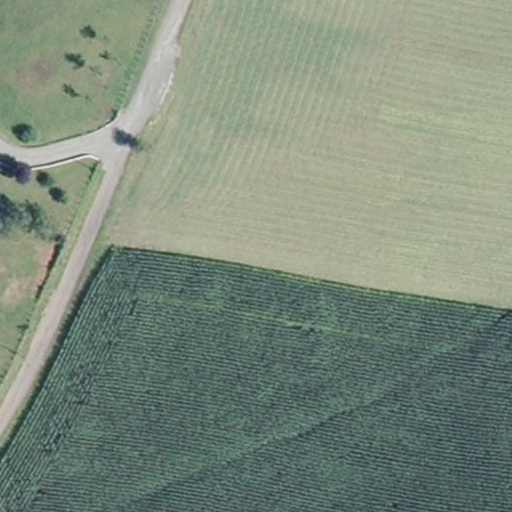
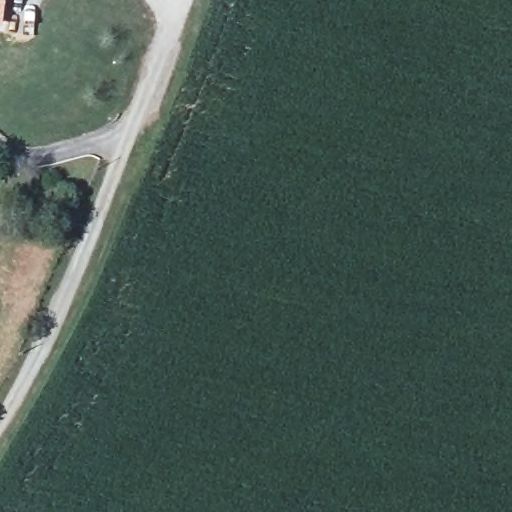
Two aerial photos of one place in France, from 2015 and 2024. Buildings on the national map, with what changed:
new [(2,31),(0,30),(0,0),(6,0),(2,31)]

